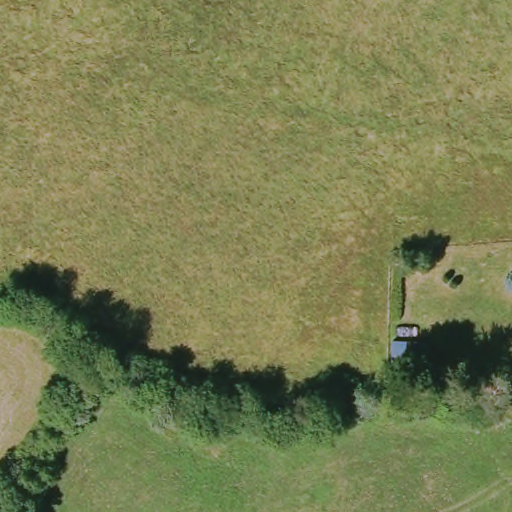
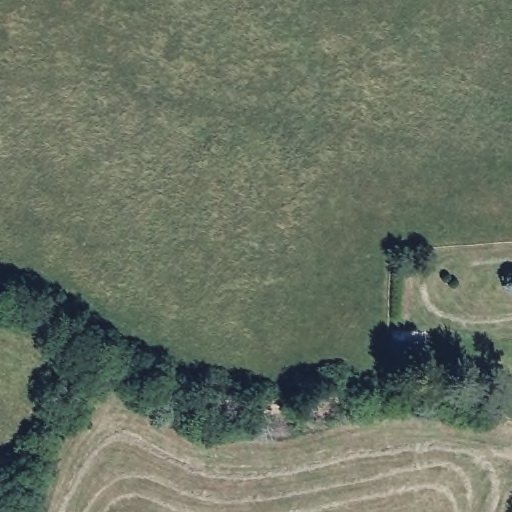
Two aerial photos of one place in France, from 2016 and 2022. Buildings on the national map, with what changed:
unchanged [(414,381),(397,380),(397,355),(415,356),(414,381)]

